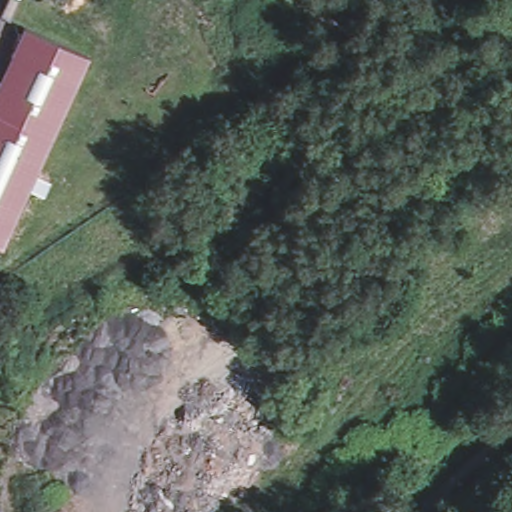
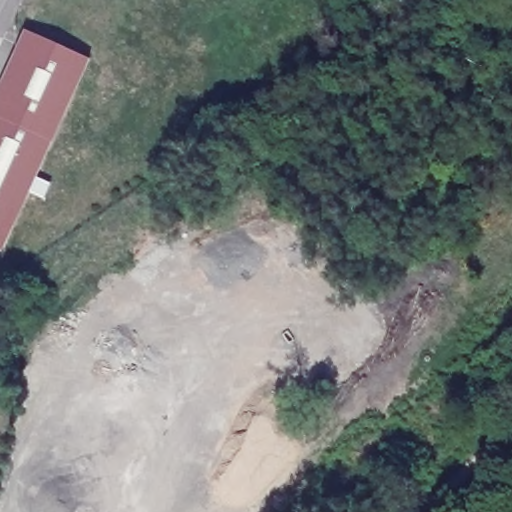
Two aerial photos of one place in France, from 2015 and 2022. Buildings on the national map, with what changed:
unchanged [(89,61),(2,253),(0,252),(0,87),(25,32),(89,61)]

